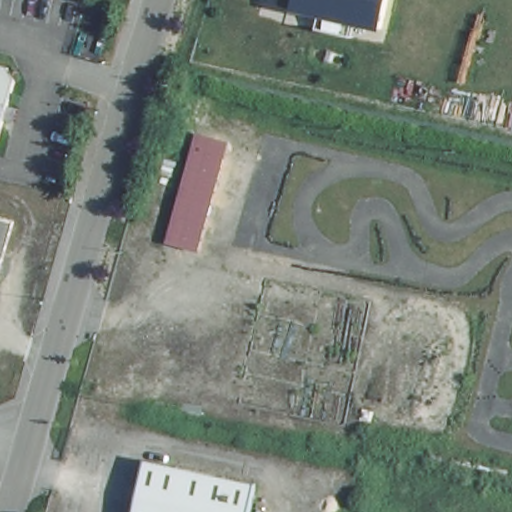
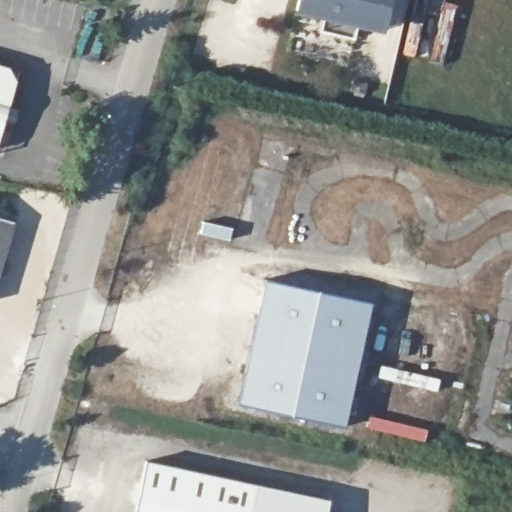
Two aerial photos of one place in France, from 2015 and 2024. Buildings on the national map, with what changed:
unchanged [(387,24),(358,21),(352,36),(324,30),(326,15),(301,11),(304,0),(391,0),(387,24)]
unchanged [(0,60),(5,61),(15,75),(0,125),(0,60)]
demolished [(231,141),(204,249),(170,239),(198,135),(231,141)]
unchanged [(0,270),(0,213),(15,217),(0,270)]
new [(238,402),(264,280),(371,302),(343,425),(238,402)]
unchanged [(251,485),(245,512),(134,512),(145,460),(251,485)]
new [(246,512),(251,483),(328,499),(325,512),(246,512)]

